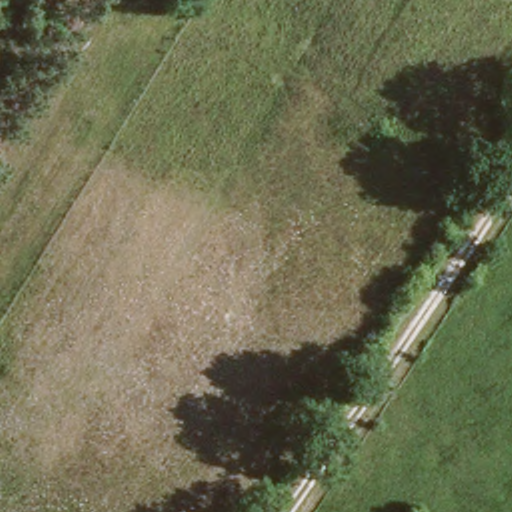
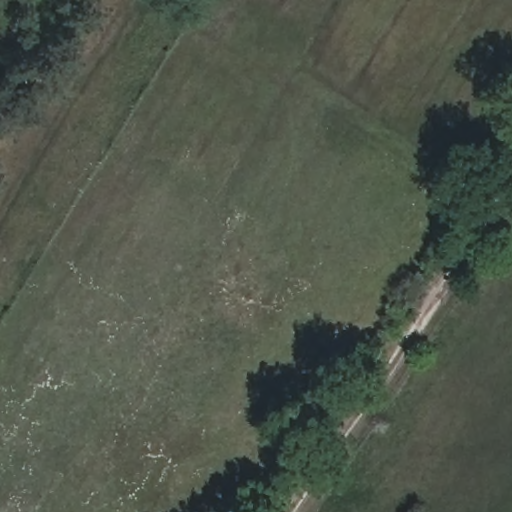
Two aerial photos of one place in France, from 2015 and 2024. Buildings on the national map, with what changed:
[]

